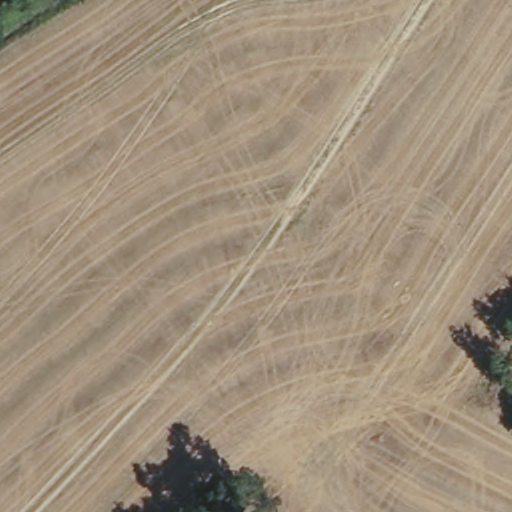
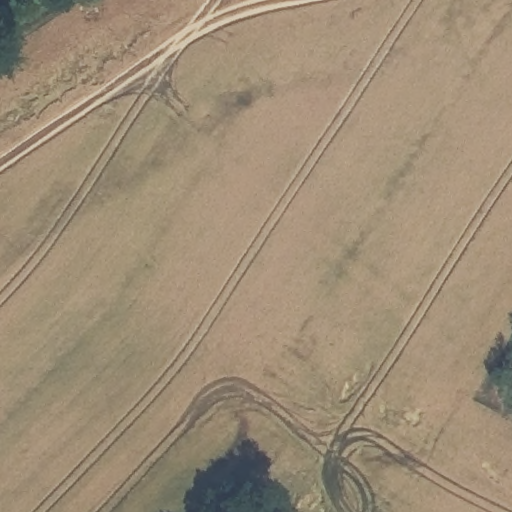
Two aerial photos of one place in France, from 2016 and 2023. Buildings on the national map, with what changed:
[]

